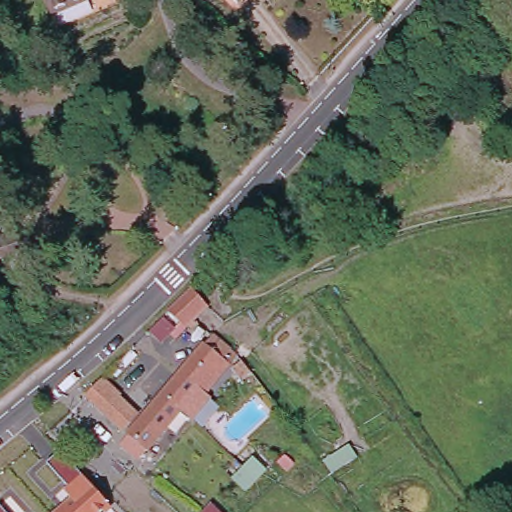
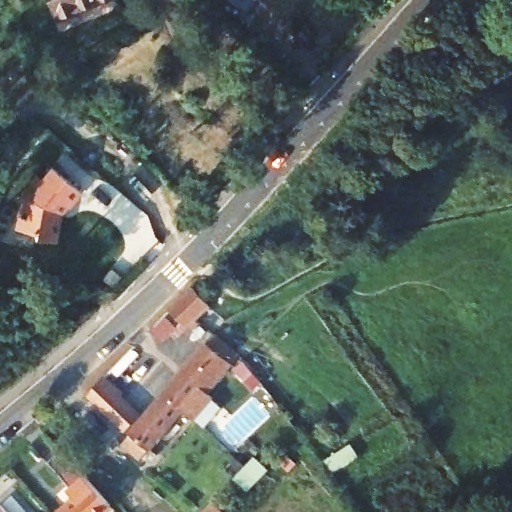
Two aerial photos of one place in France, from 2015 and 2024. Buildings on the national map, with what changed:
unchanged [(55,15),(47,0),(87,0),(55,15)]
unchanged [(239,2),(236,0),(241,0),(239,2)]
new [(34,237),(35,232),(15,229),(20,195),(35,176),(39,180),(49,167),(77,190),(66,206),(64,205),(57,212),(54,240),(34,237)]
demolished [(15,262),(3,266),(0,257),(0,236),(25,229),(30,244),(11,250),(15,262)]
unchanged [(187,325),(170,307),(191,287),(207,305),(196,316),(187,325)]
unchanged [(174,328),(157,343),(147,330),(162,315),(174,328)]
unchanged [(191,410),(181,401),(176,407),(141,450),(125,439),(161,393),(212,328),(237,347),(206,384),(209,386),(191,410)]
unchanged [(238,350),(242,353),(249,363),(239,370),(230,357),(238,349),(238,350)]
unchanged [(117,385),(112,390),(130,410),(116,423),(101,408),(81,388),(101,370),(117,385)]
unchanged [(114,510),(111,512),(55,512),(71,497),(64,490),(69,486),(47,463),(63,450),(83,476),(114,510)]
unchanged [(262,467),(251,477),(240,487),(230,475),(239,467),(252,456),(262,467)]
unchanged [(202,512),(212,503),(221,512),(202,512)]
unchanged [(5,512),(0,512),(0,508),(1,507),(5,512)]

